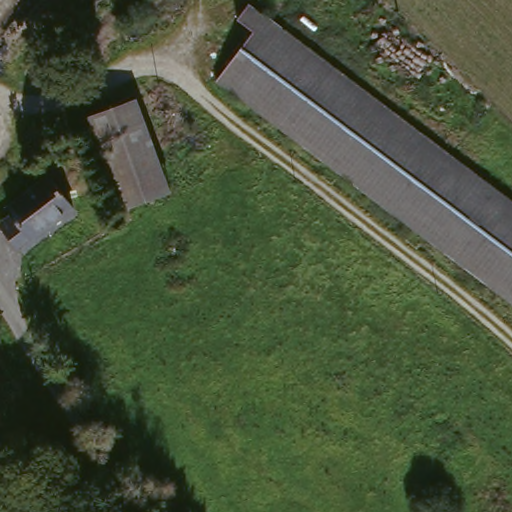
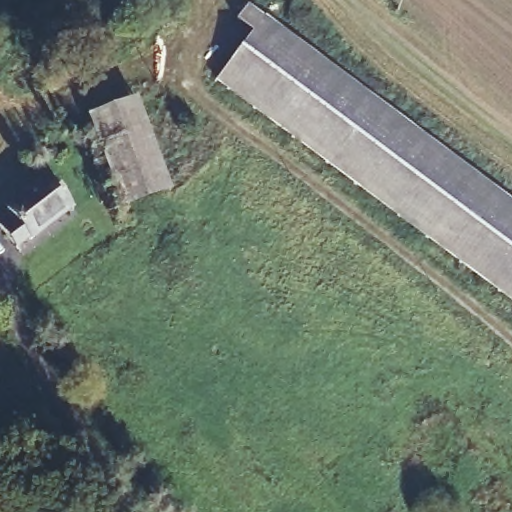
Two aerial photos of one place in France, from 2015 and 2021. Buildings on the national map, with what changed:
unchanged [(221,67),(258,22),(243,10),(250,0),(259,0),(512,207),(512,305),(221,67)]
unchanged [(167,197),(121,212),(103,156),(90,116),(136,102),(159,172),(167,197)]
unchanged [(49,171),(72,207),(26,241),(3,204),(49,171)]

